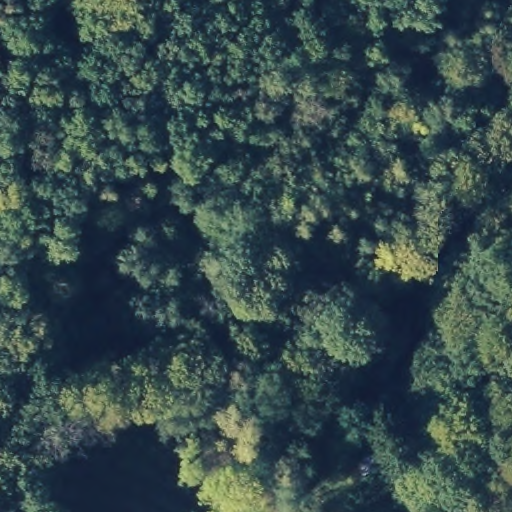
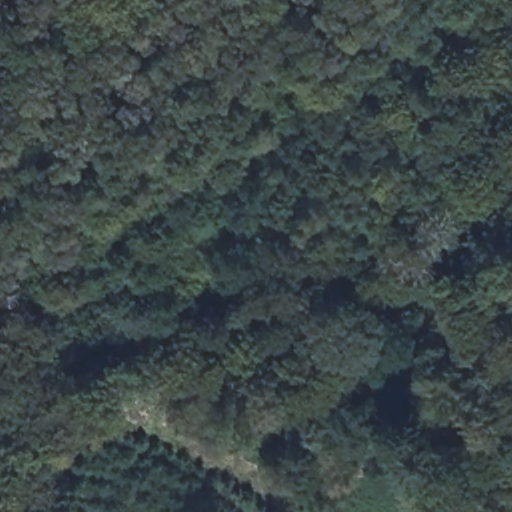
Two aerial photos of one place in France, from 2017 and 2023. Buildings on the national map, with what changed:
unchanged [(378,441),(386,466),(356,477),(348,450),(378,441)]

